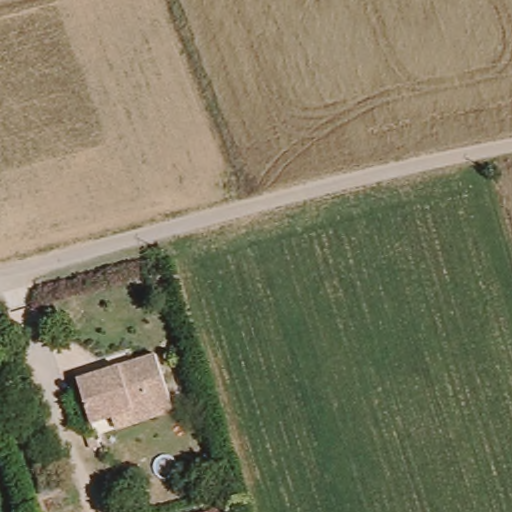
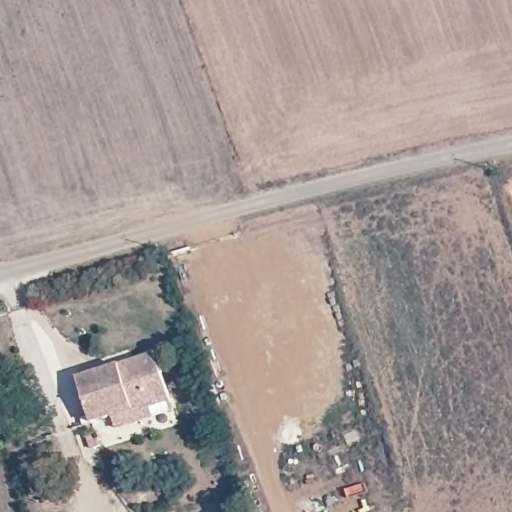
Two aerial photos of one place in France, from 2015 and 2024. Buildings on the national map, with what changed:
unchanged [(170,400),(136,412),(136,410),(93,425),(79,382),(156,357),(170,400)]

